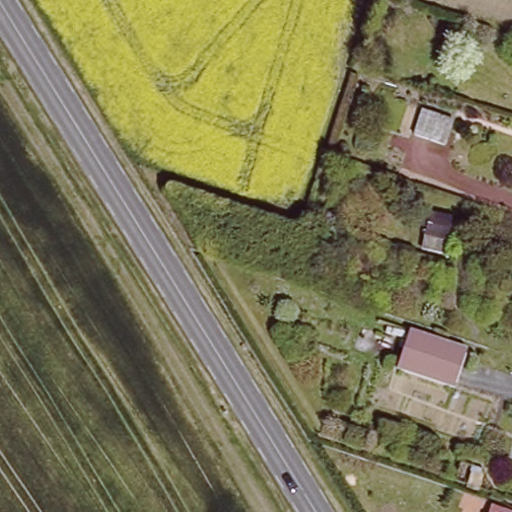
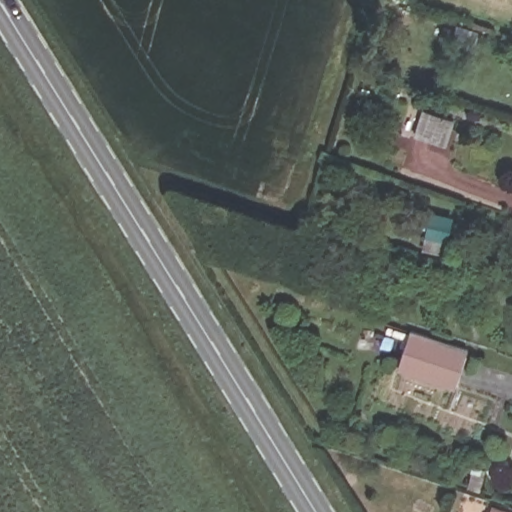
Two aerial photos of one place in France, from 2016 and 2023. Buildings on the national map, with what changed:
unchanged [(366,94),(363,104),(354,100),(357,91),(366,94)]
unchanged [(450,125),(442,149),(413,140),(421,117),(450,125)]
unchanged [(450,226),(443,246),(423,240),(430,220),(450,226)]
unchanged [(397,370),(410,330),(467,350),(455,390),(397,370)]

